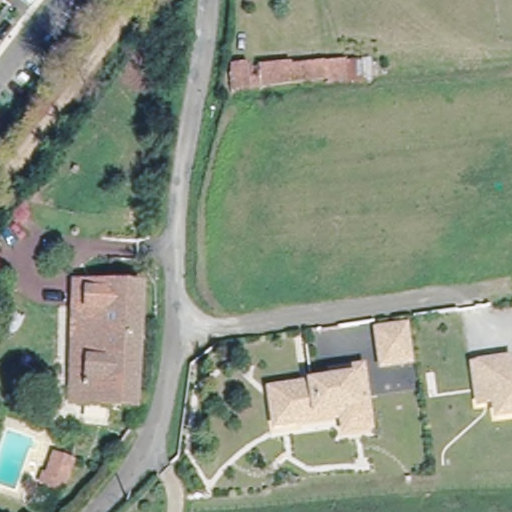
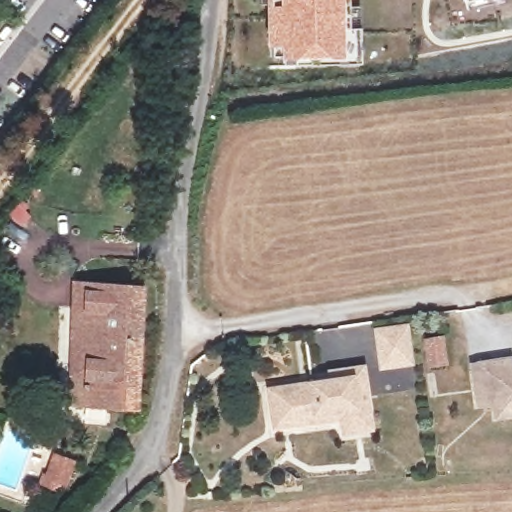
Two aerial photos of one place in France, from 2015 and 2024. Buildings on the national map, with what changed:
new [(345,58),(282,61),(281,57),(275,58),(275,47),(267,47),(268,0),(344,0),(345,58)]
demolished [(235,62),(250,62),(252,86),(235,86),(235,62)]
demolished [(261,64),(294,62),(294,65),(302,64),(303,72),(310,72),(311,79),(262,84),(261,64)]
unchanged [(148,366),(134,365),(131,405),(67,401),(69,365),(71,310),(73,285),(138,289),(135,336),(150,337),(148,366)]
unchanged [(408,328),(413,364),(383,368),(378,332),(408,328)]
unchanged [(492,393),(476,395),(473,358),(489,357),(509,355),(512,354),(512,406),(494,408),(492,393)]
unchanged [(346,433),(344,418),(277,428),(276,420),(272,392),(366,378),(371,415),(373,430),(346,433)]
unchanged [(44,473),(47,475),(55,456),(72,461),(65,481),(62,481),(60,490),(50,486),(40,482),(44,473)]

